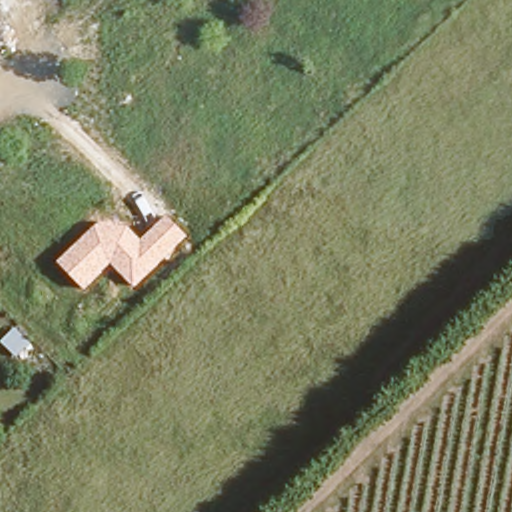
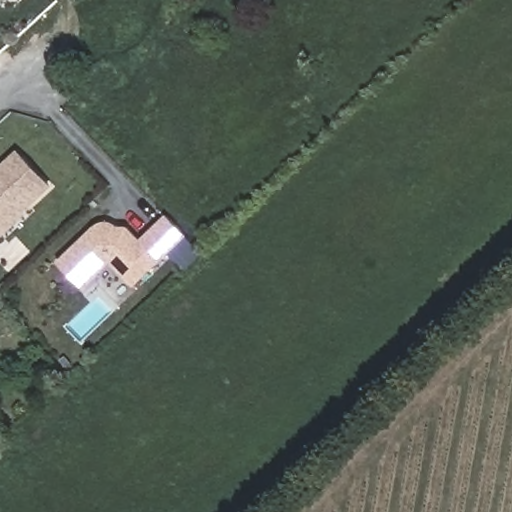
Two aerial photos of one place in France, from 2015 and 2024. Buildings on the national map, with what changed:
new [(27,216),(5,237),(0,237),(0,166),(18,149),(53,186),(28,210),(27,216)]
unchanged [(135,288),(111,264),(85,289),(59,263),(96,227),(101,223),(115,224),(116,228),(129,228),(141,241),(167,216),(188,237),(135,288)]

